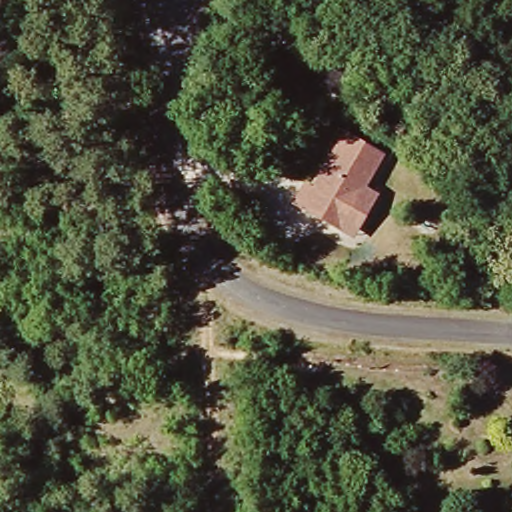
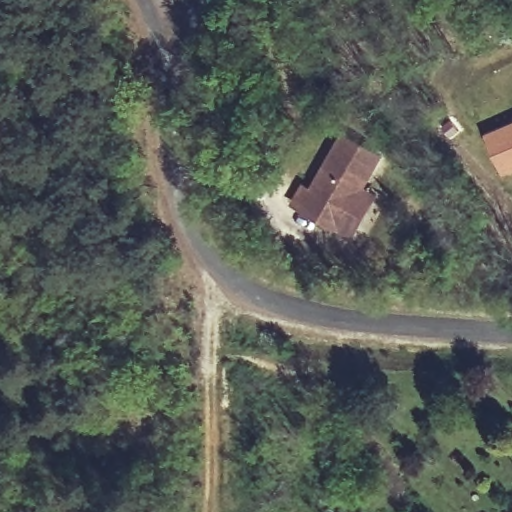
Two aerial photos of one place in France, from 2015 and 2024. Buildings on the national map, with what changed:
unchanged [(48,129),(44,132),(36,133),(32,130),(31,122),(35,117),(43,117),(47,121),(48,129)]
new [(502,175),(484,132),(512,121),(512,171),(502,175)]
unchanged [(313,186),(343,130),(386,155),(367,187),(380,195),(353,240),(292,204),(304,182),(313,186)]

